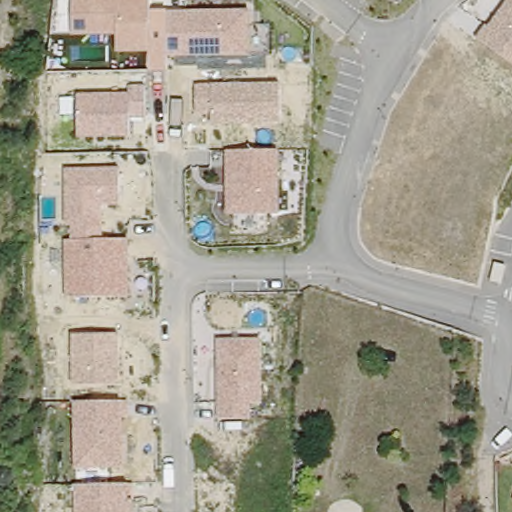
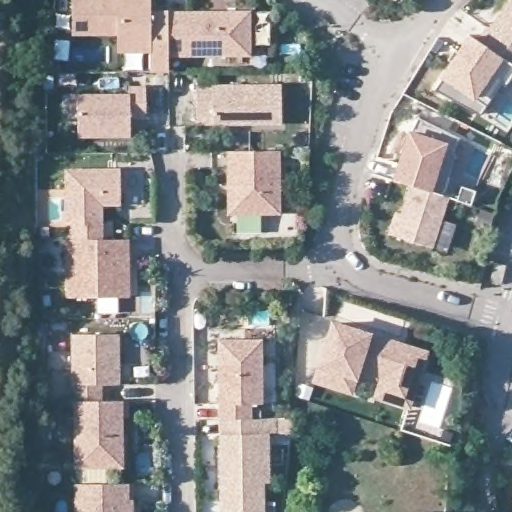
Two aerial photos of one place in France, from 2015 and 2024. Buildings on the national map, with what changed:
unchanged [(152,0),(152,12),(168,12),(250,11),(252,56),(168,57),(168,72),(149,73),(148,55),(117,54),(117,36),(73,35),(73,0),(152,0)]
unchanged [(487,26),(491,27),(511,0),(512,0),(512,65),(477,39),(487,26)]
new [(502,83),(479,116),(436,90),(440,78),(462,45),(469,35),(477,39),(512,65),(512,76),(506,86),(502,83)]
unchanged [(194,84),(280,83),(280,126),(212,127),(211,112),(195,114),(194,84)]
unchanged [(78,96),(127,95),(127,87),(145,87),(145,121),(130,121),(131,137),(78,137),(78,96)]
new [(415,112),(456,134),(448,148),(451,150),(438,190),(412,182),(391,175),(407,129),(415,112)]
unchanged [(226,150),(279,150),(279,214),(228,215),(226,150)]
unchanged [(65,240),(72,239),(72,224),(67,224),(66,169),(120,169),(121,205),(104,206),(104,239),(128,239),(128,297),(65,297),(65,240)]
new [(403,211),(412,182),(438,190),(448,194),(431,244),(396,232),(390,231),(397,209),(403,211)]
new [(468,199),(453,195),(458,182),(472,187),(468,199)]
new [(430,352),(409,410),(372,397),(380,377),(361,371),(358,381),(353,395),(311,382),(317,367),(331,321),(430,352)]
unchanged [(72,336),(120,335),(121,385),(72,385),(72,336)]
unchanged [(217,341),(261,340),(263,405),(252,405),(252,420),(219,420),(217,341)]
unchanged [(72,403),(125,402),(125,468),(75,470),(72,403)]
new [(264,418),(263,433),(269,433),(270,482),(265,483),(265,512),(221,512),(219,420),(252,420),(264,418)]
unchanged [(75,486),(129,485),(129,512),(75,512),(75,486)]

